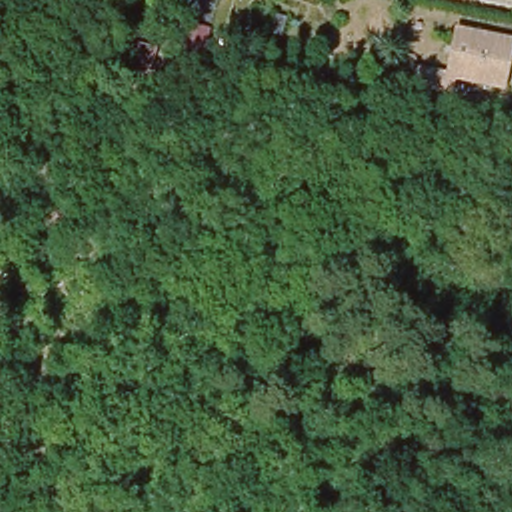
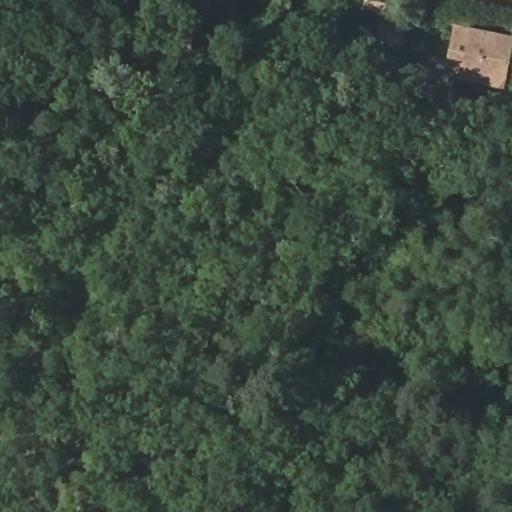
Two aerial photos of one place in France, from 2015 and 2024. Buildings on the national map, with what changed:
unchanged [(495,80),(460,72),(456,89),(415,80),(419,61),(450,68),(460,24),(512,35),(512,40),(509,57),(504,81),(495,80)]
unchanged [(141,69),(147,45),(167,50),(161,73),(141,69)]

